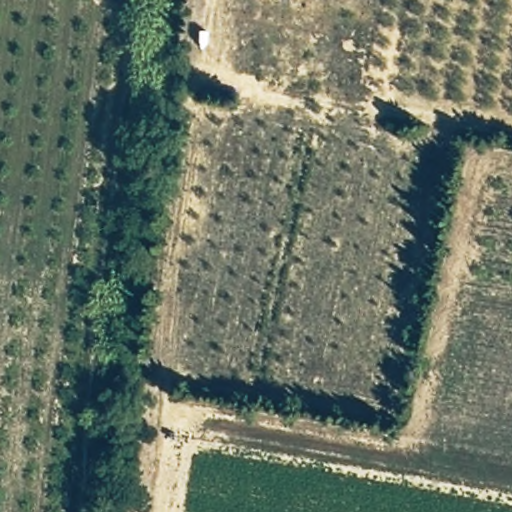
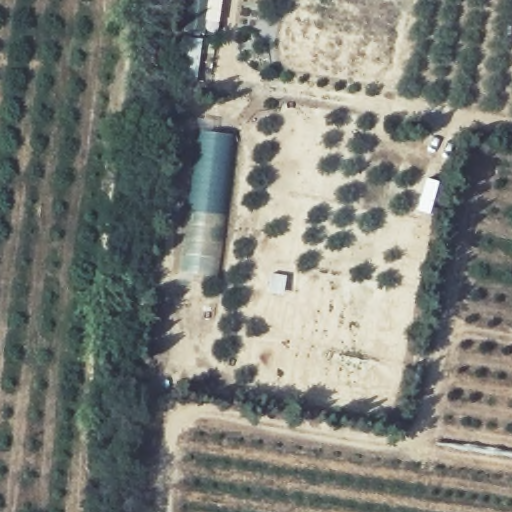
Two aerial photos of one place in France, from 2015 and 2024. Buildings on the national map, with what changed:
new [(185,32),(189,0),(220,0),(210,36),(185,32)]
new [(217,277),(178,273),(197,131),(234,135),(217,277)]

